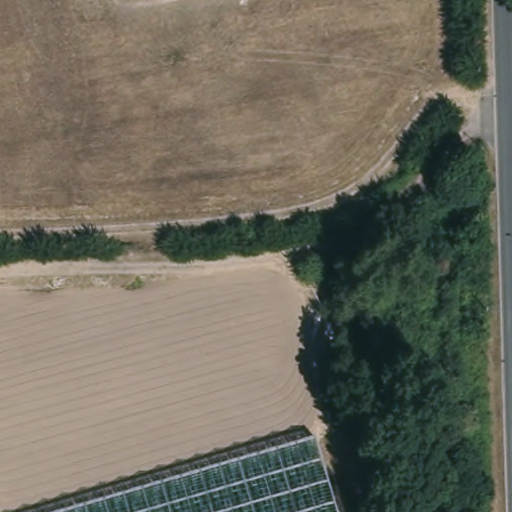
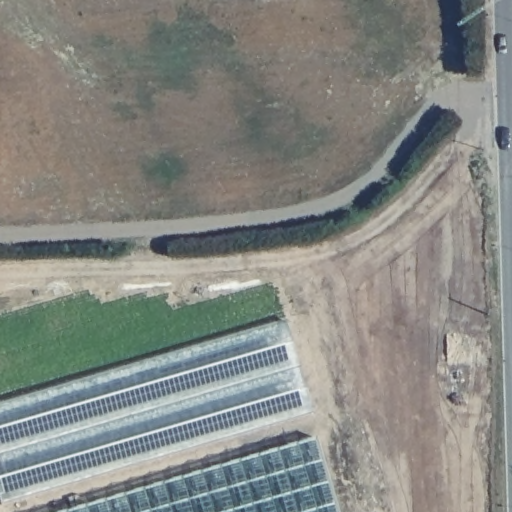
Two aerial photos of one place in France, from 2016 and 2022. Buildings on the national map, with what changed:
new [(0,404),(285,321),(312,413),(1,504),(0,503),(0,404)]
unchanged [(343,512),(58,512),(324,440),(343,512)]

